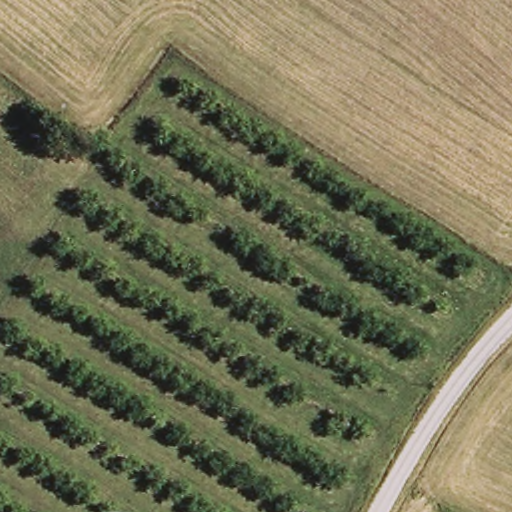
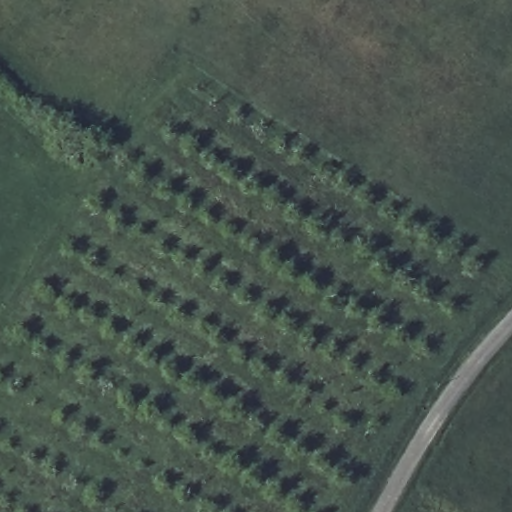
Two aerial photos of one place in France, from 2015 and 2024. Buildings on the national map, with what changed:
[]

